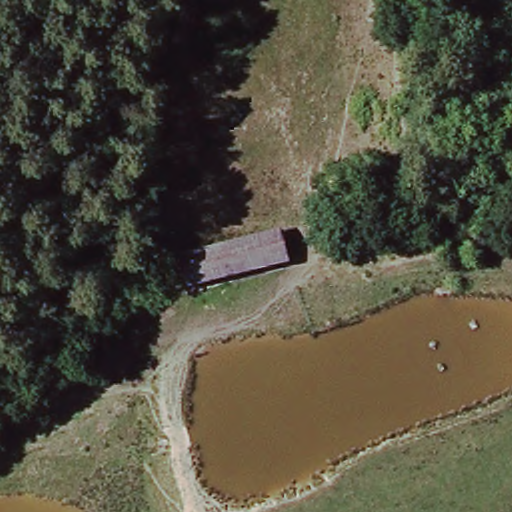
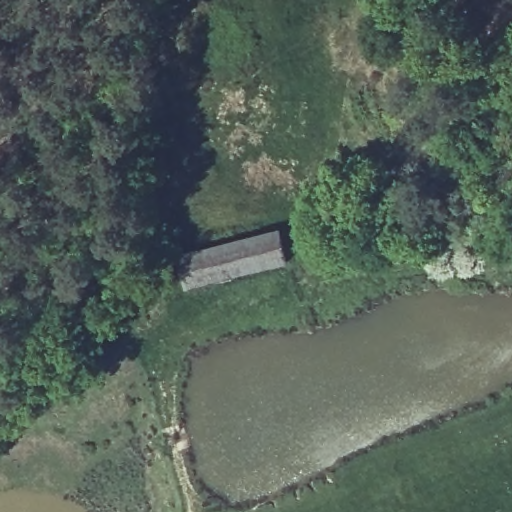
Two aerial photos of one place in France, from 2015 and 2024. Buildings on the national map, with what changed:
unchanged [(278,226),(288,261),(189,286),(174,254),(278,226)]

